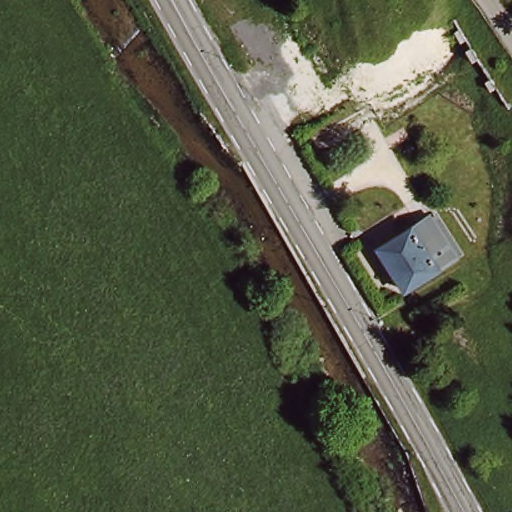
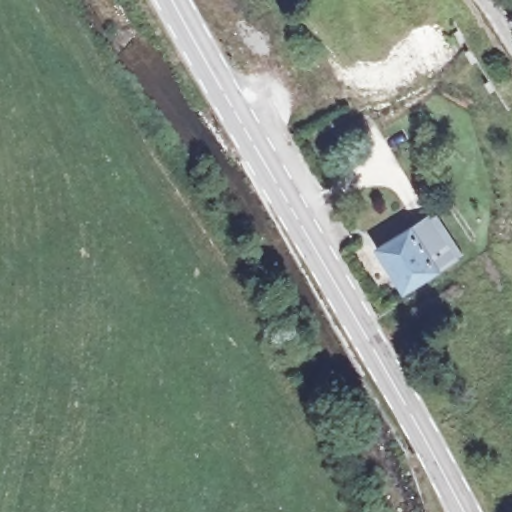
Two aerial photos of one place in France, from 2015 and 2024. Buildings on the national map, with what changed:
unchanged [(452,265),(399,293),(376,249),(428,221),(452,265)]

